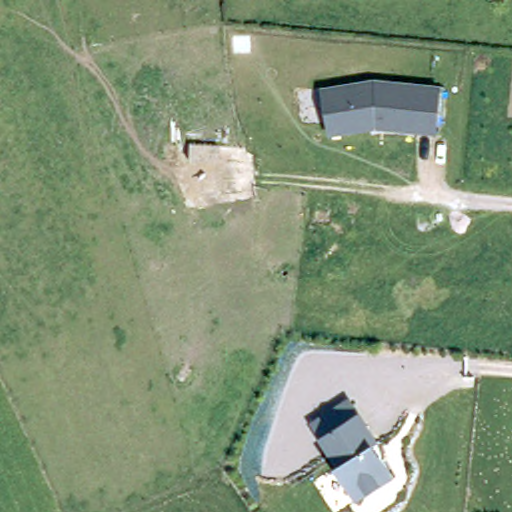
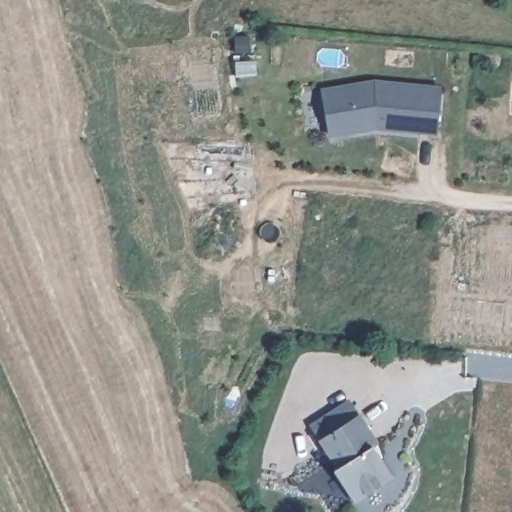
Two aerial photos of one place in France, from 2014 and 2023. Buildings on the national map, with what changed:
unchanged [(375,80),(441,85),(436,134),(376,129),(330,136),(320,88),(375,80)]
unchanged [(318,438),(307,420),(348,395),(361,412),(391,476),(353,500),(318,438)]

